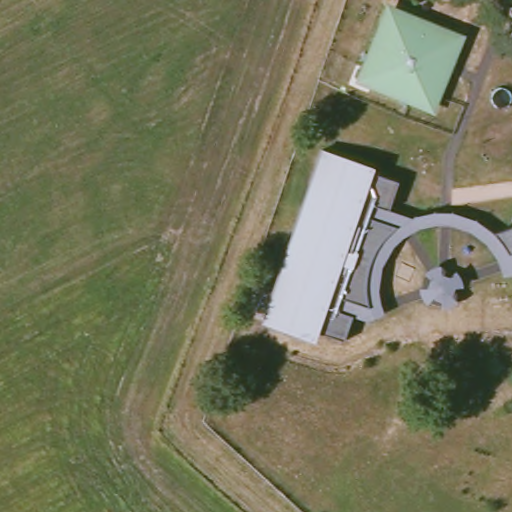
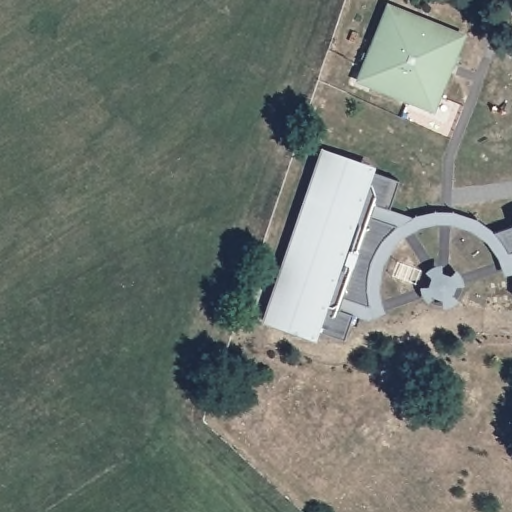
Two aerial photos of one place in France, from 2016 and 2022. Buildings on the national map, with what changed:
unchanged [(462,31),(438,95),(419,101),(372,82),(365,62),(390,3),(462,31)]
unchanged [(379,167),(376,173),(400,182),(390,210),(414,218),(419,216),(430,214),(438,212),(448,212),(459,214),(469,217),(480,222),(490,227),(497,232),(512,227),(512,276),(505,277),(503,268),(500,260),(494,250),(487,241),(478,235),(467,229),(455,226),(445,225),(433,227),(419,231),(408,236),(398,246),(389,258),(385,268),(381,277),(380,288),(381,301),(387,313),(371,321),(354,316),(345,342),(321,333),(317,342),(263,324),(322,148),(379,167)]

